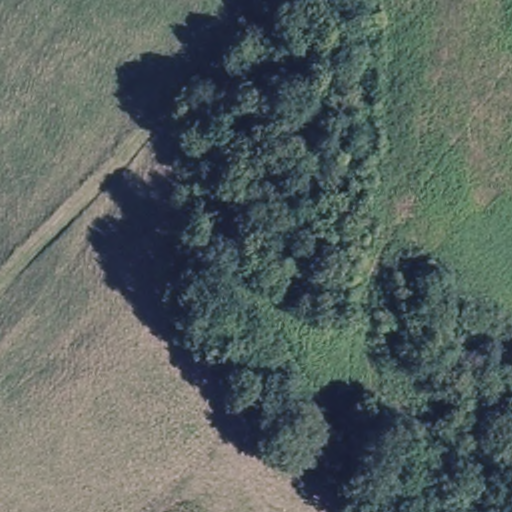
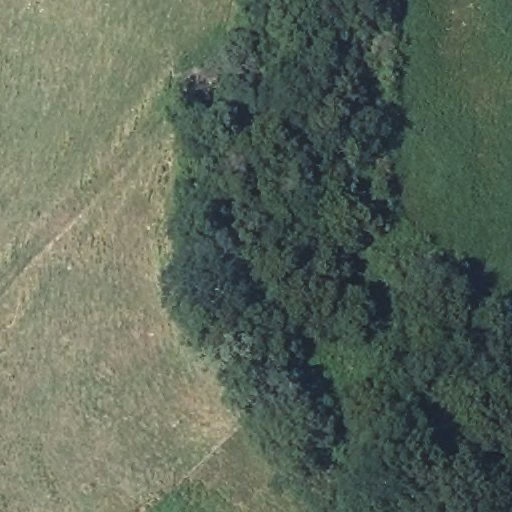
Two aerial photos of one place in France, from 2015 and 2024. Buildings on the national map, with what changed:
[]

